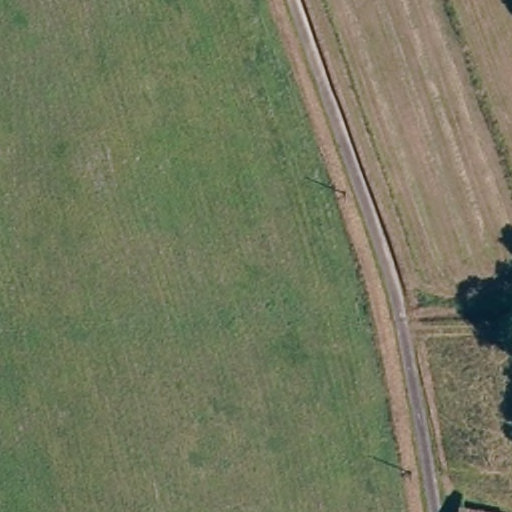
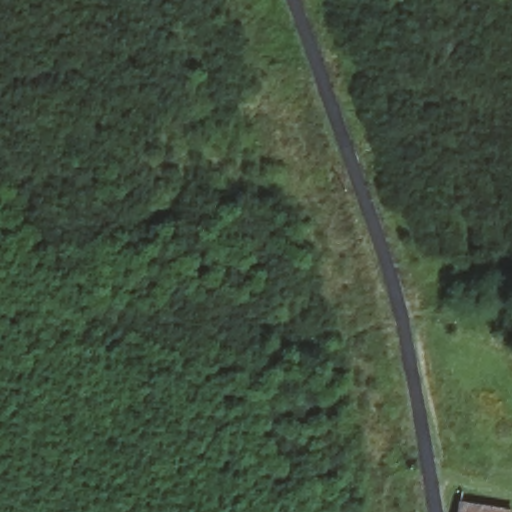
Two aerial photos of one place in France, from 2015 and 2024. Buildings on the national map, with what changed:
unchanged [(512,510),(511,512),(460,512),(462,500),(512,510)]

